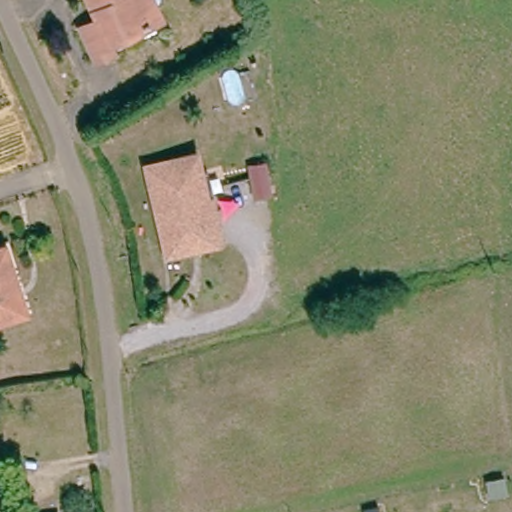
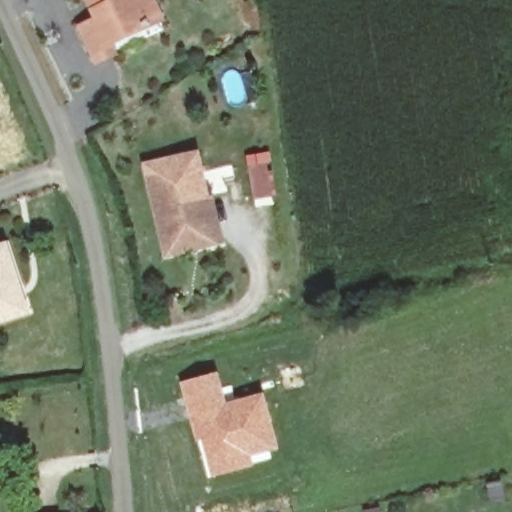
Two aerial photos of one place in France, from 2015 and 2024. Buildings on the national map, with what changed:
unchanged [(83,0),(131,0),(142,30),(100,49),(106,62),(90,70),(89,67),(76,33),(86,28),(93,25),(90,18),(86,7),(84,2),(83,0)]
unchanged [(100,49),(142,30),(131,0),(142,0),(158,40),(106,62),(100,49)]
unchanged [(189,255),(164,260),(146,168),(198,159),(213,234),(216,250),(189,255)]
unchanged [(272,205),(255,207),(251,175),(268,173),(272,205)]
unchanged [(4,253),(26,315),(0,324),(0,254),(4,253)]
new [(226,403),(263,392),(279,450),(250,457),(253,466),(212,478),(200,440),(196,442),(180,382),(217,372),(226,403)]
unchanged [(512,503),(496,507),(492,492),(510,488),(512,497),(512,503)]
unchanged [(16,507),(54,502),(56,512),(17,512),(16,507)]
unchanged [(104,506),(105,512),(62,512),(104,506)]

